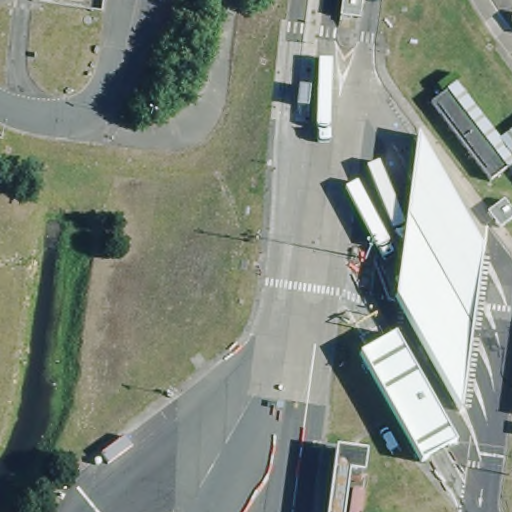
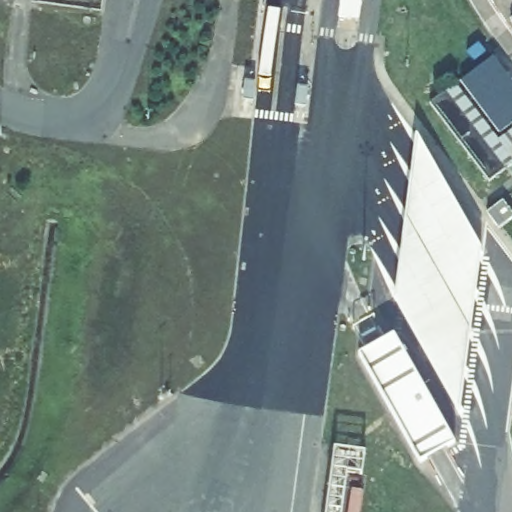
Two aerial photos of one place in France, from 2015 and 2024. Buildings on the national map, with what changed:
unchanged [(339,19),(341,0),(349,0),(361,1),(359,21),(339,19)]
unchanged [(512,17),(512,21),(510,18),(512,17)]
new [(512,124),(500,134),(460,83),(493,58),(512,83),(512,124)]
unchanged [(499,141),(512,131),(512,164),(506,168),(446,90),(456,84),(499,141)]
unchanged [(430,102),(446,90),(506,168),(490,181),(430,102)]
unchanged [(482,245),(463,411),(396,304),(418,134),(482,245)]
new [(500,201),(512,216),(512,218),(500,229),(487,213),(500,201)]
unchanged [(457,443),(420,463),(359,356),(395,337),(457,443)]
unchanged [(365,453),(362,475),(347,473),(341,512),(325,512),(334,449),(365,453)]

